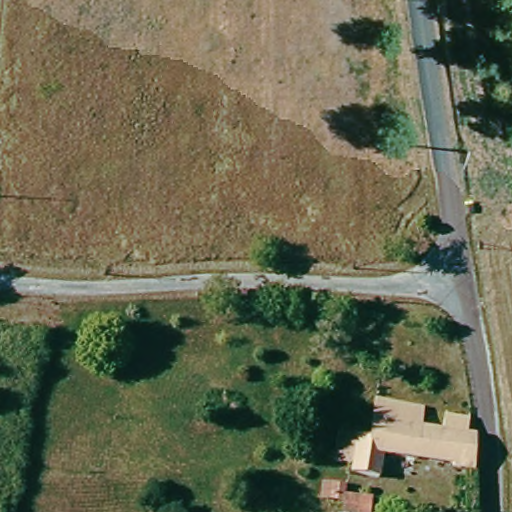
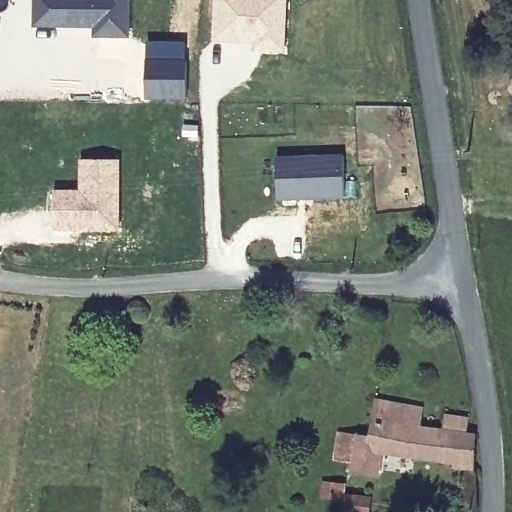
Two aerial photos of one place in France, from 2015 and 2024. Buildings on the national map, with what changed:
new [(131,0),(130,38),(92,37),(91,28),(32,28),(32,0),(131,0)]
new [(215,39),(216,0),(284,0),(282,49),(262,49),(261,41),(215,39)]
new [(145,41),(185,40),(187,99),(145,100),(145,41)]
new [(278,200),(276,158),(342,156),(343,198),(278,200)]
new [(53,192),(81,191),(81,160),(118,161),(117,229),(54,229),(53,192)]
unchanged [(465,436),(479,439),(476,472),(392,459),(387,482),(357,478),(358,465),(350,462),(352,438),(372,439),(376,411),(423,416),(422,432),(442,434),(444,423),(463,426),(465,436)]
unchanged [(349,492),(336,492),(338,479),(350,480),(349,492)]
unchanged [(356,488),(382,492),(380,508),(355,504),(356,488)]

